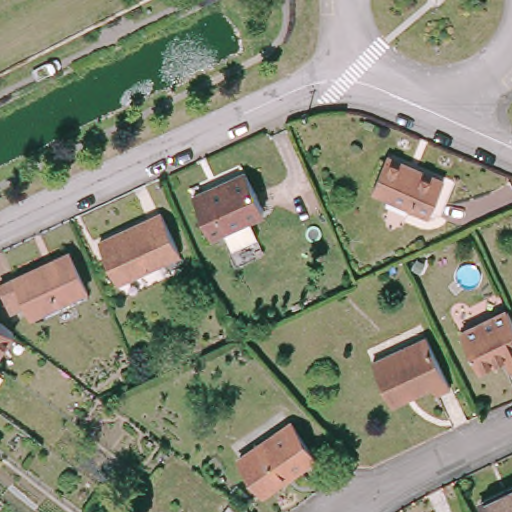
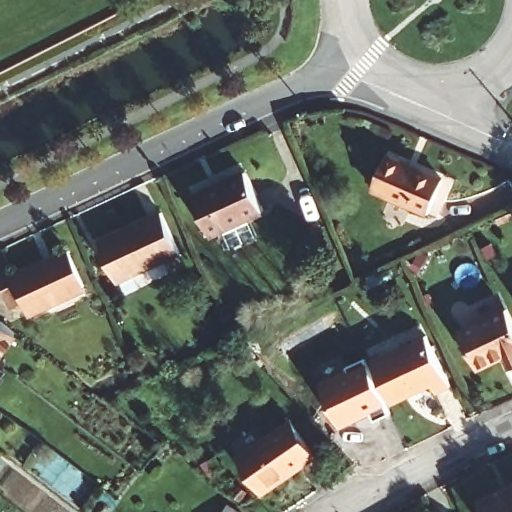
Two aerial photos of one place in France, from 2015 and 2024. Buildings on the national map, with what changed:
unchanged [(415,170),(417,165),(443,177),(430,209),(375,185),(387,157),(415,170)]
unchanged [(247,175),(264,211),(254,215),(213,234),(196,198),(237,179),(247,175)]
unchanged [(181,251),(119,279),(105,250),(167,220),(181,251)]
unchanged [(89,293),(45,313),(43,307),(34,311),(29,300),(16,307),(4,281),(70,251),(89,293)]
unchanged [(512,306),(512,360),(506,346),(487,355),(470,320),(510,301),(512,306)]
unchanged [(7,325),(0,335),(0,320),(7,325)]
unchanged [(429,333),(453,383),(439,389),(433,377),(407,390),(408,392),(392,400),(373,359),(429,333)]
new [(385,401),(390,411),(377,418),(372,410),(341,426),(322,380),(349,368),(346,365),(371,353),(373,359),(392,400),(385,401)]
unchanged [(310,450),(257,485),(233,453),(287,416),(310,450)]
unchanged [(482,502),(512,487),(512,512),(486,512),(482,502)]
unchanged [(244,512),(239,512),(242,510),(244,512)]

